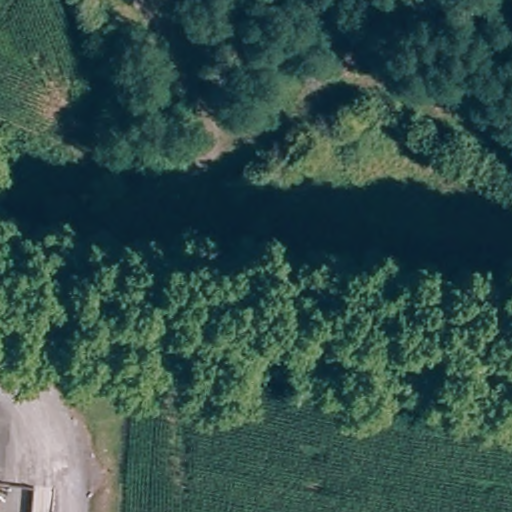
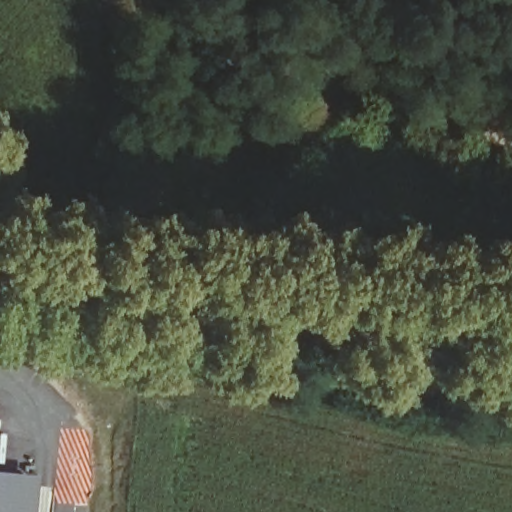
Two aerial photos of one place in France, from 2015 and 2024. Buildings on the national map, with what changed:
demolished [(152,0),(189,0),(162,17),(152,0)]
unchanged [(360,26),(381,56),(337,85),(319,56),(360,26)]
unchanged [(512,164),(480,141),(497,114),(512,125),(512,164)]
new [(32,512),(0,512),(0,471),(36,474),(32,512)]

